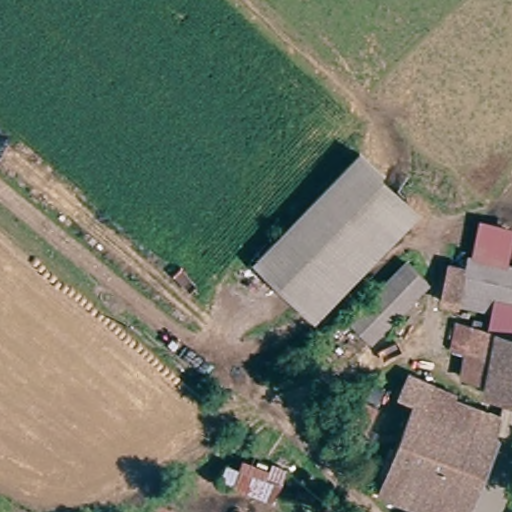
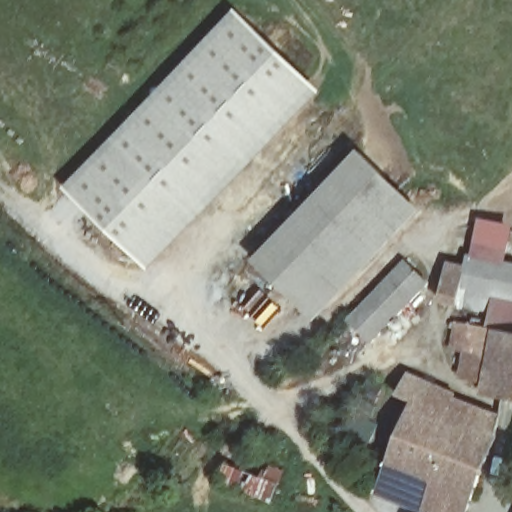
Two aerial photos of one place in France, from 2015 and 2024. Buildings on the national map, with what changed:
new [(323,93),(149,272),(64,189),(237,10),(323,93)]
unchanged [(255,256),(360,145),(422,206),(317,317),(255,256)]
unchanged [(494,303),(491,310),(437,301),(444,263),(465,268),(465,256),(468,257),(478,219),(512,226),(512,246),(508,263),(512,264),(512,305),(494,303)]
unchanged [(404,261),(427,286),(370,345),(344,322),(404,261)]
unchanged [(481,400),(484,386),(460,382),(464,354),(447,352),(455,324),(512,337),(512,406),(481,400)]
unchanged [(408,405),(390,398),(401,372),(451,393),(449,403),(499,425),(469,512),(414,512),(373,495),(408,405)]
unchanged [(229,454),(263,470),(268,461),(281,482),(271,501),(217,476),(229,454)]

